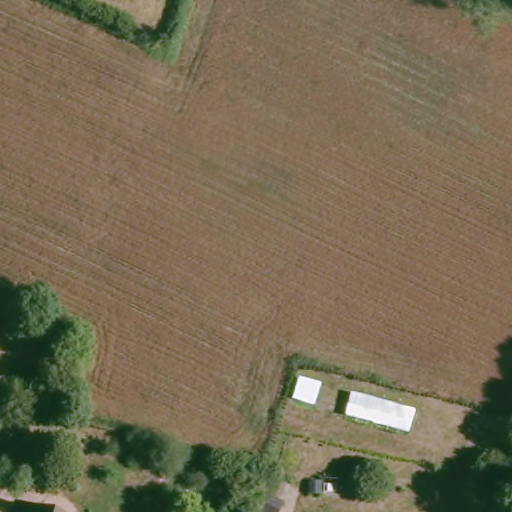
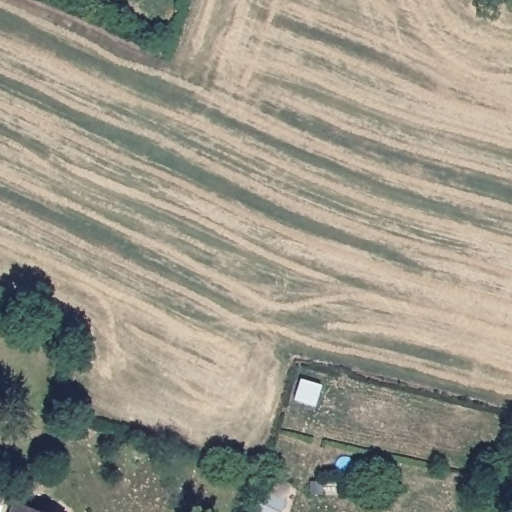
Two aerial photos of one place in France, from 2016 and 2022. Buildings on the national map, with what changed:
unchanged [(72,512),(18,512),(25,493),(72,512)]

